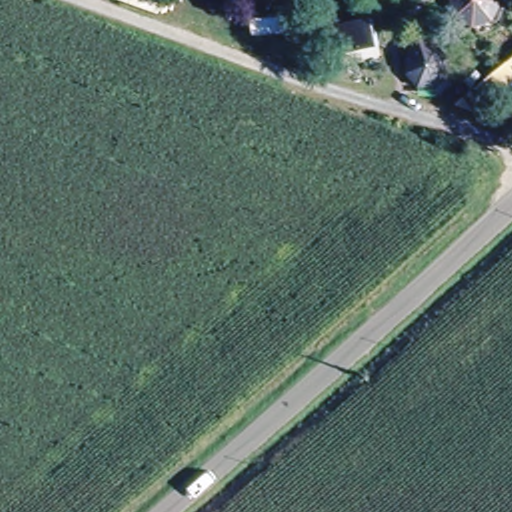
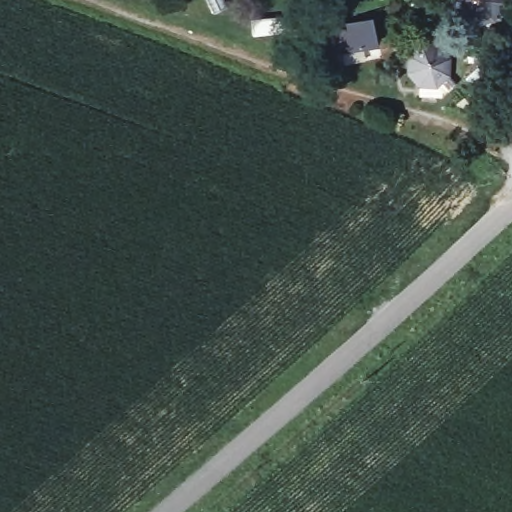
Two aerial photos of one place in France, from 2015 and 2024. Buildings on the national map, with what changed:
unchanged [(492,9),(485,23),(469,29),(455,22),(449,6),(452,0),(488,0),(492,9)]
unchanged [(321,31),(331,29),(368,21),(373,48),(336,56),(326,58),(321,31)]
unchanged [(452,76),(446,92),(432,97),(417,92),(406,64),(415,39),(435,47),(442,50),(452,76)]
unchanged [(454,105),(500,69),(512,84),(512,85),(477,113),(454,105)]

